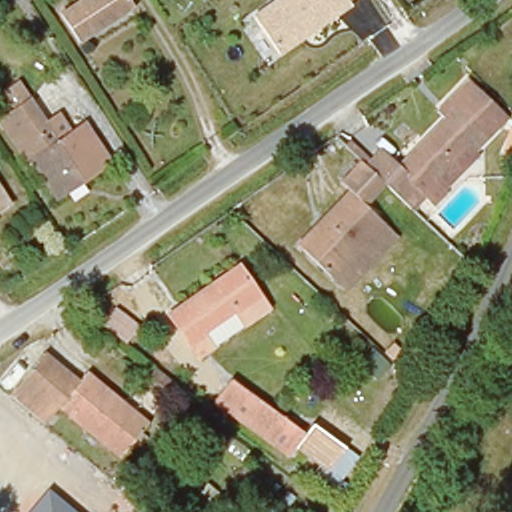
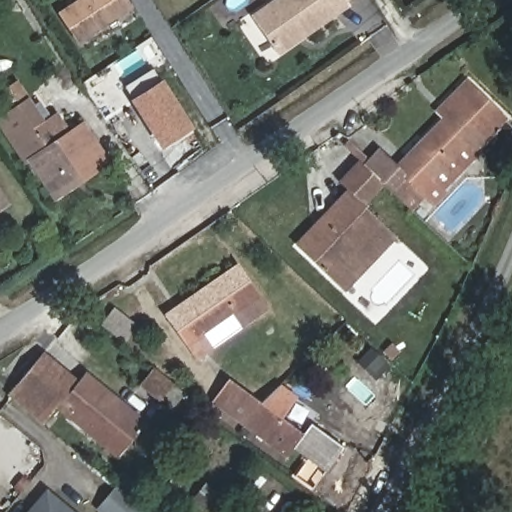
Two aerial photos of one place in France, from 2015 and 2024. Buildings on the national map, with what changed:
unchanged [(80,0),(129,0),(134,10),(80,42),(62,11),(80,0)]
unchanged [(280,57),(251,15),(273,0),(348,0),(353,7),(280,57)]
new [(129,89),(157,72),(164,84),(166,83),(197,132),(164,152),(134,102),(136,101),(129,89)]
unchanged [(382,151),(396,170),(450,121),(444,114),(456,104),(476,86),(511,125),(478,154),(471,146),(435,179),(448,193),(429,209),(420,198),(409,208),(368,161),(382,151)]
unchanged [(54,198),(29,157),(25,159),(0,117),(0,116),(24,102),(30,98),(58,142),(83,126),(107,165),(54,198)]
unchanged [(347,189),(337,179),(356,159),(381,185),(359,205),(331,233),(335,237),(310,264),(290,245),(347,189)]
unchanged [(0,211),(0,188),(10,204),(0,211)]
unchanged [(310,264),(335,237),(331,233),(359,205),(391,237),(338,289),(310,264)]
unchanged [(161,335),(180,322),(175,315),(244,269),(270,308),(252,320),(202,354),(195,345),(176,357),(161,335)]
new [(118,310),(139,327),(126,343),(104,325),(118,310)]
unchanged [(144,423),(120,454),(59,406),(43,428),(9,401),(33,370),(47,353),(79,378),(82,374),(144,423)]
unchanged [(305,434),(314,424),(359,460),(338,486),(301,454),(291,465),(212,406),(233,381),(305,434)]
unchanged [(28,512),(48,490),(75,512),(28,512)]
new [(140,507),(137,512),(106,512),(122,492),(140,507)]

